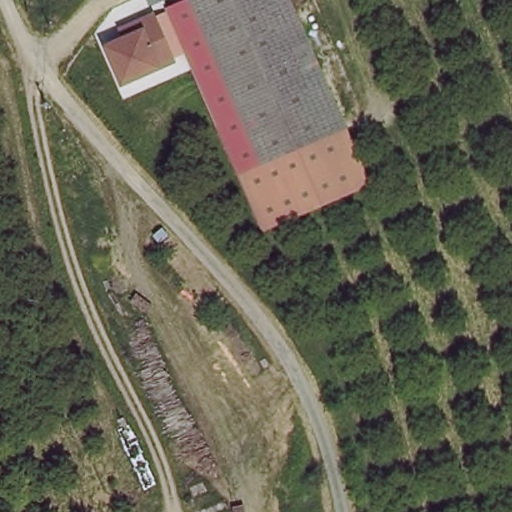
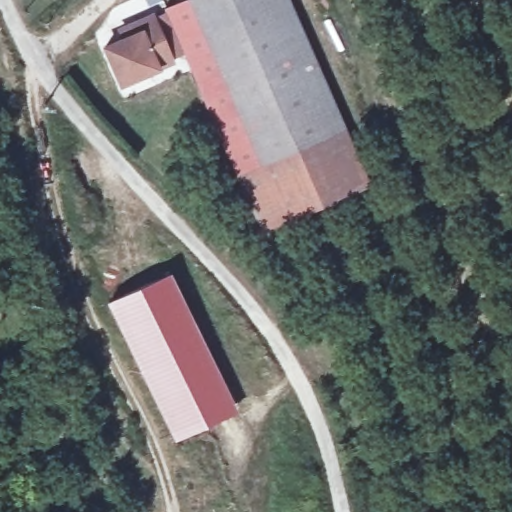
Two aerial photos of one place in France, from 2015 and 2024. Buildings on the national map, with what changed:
unchanged [(235,174),(162,9),(183,0),(186,0),(197,26),(258,163),(235,174)]
unchanged [(256,0),(197,26),(186,0),(256,0)]
unchanged [(197,26),(256,0),(273,0),(333,129),(258,163),(197,26)]
new [(182,54),(172,59),(174,64),(160,68),(118,87),(100,45),(117,38),(115,29),(153,14),(154,16),(164,13),(182,54)]
unchanged [(258,163),(333,129),(354,178),(257,223),(235,174),(258,163)]
new [(106,302),(169,272),(237,412),(174,441),(106,302)]

